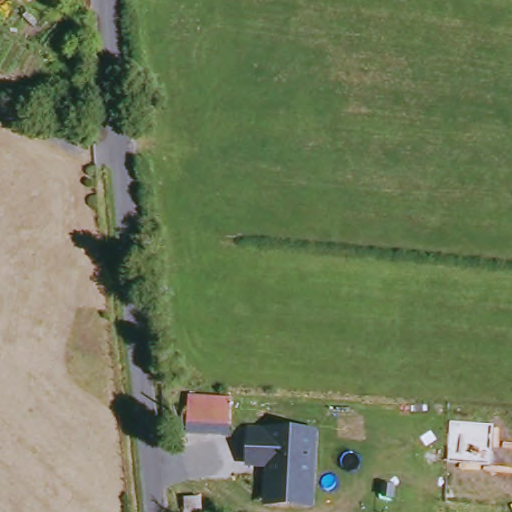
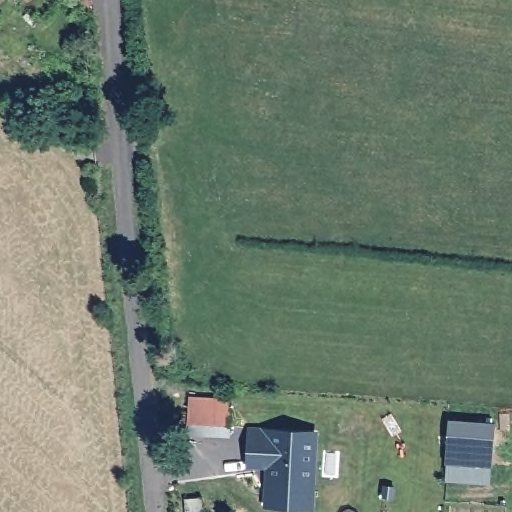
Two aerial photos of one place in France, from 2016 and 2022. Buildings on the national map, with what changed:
unchanged [(78,0),(90,0),(90,11),(78,0)]
unchanged [(190,424),(190,403),(233,405),(232,427),(190,424)]
new [(495,423),(493,466),(446,463),(450,419),(495,423)]
unchanged [(269,470),(248,469),(251,429),(321,433),(317,511),(267,511),(269,470)]

